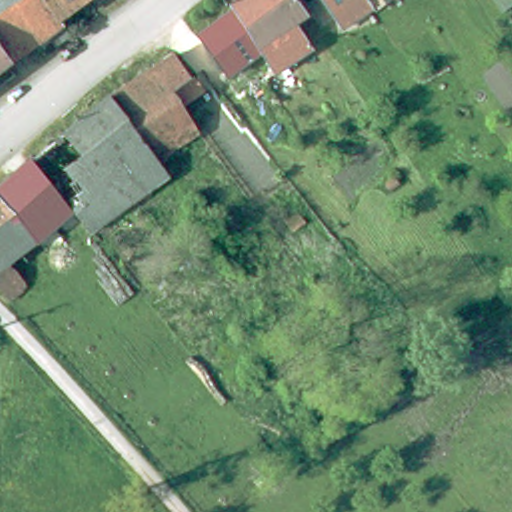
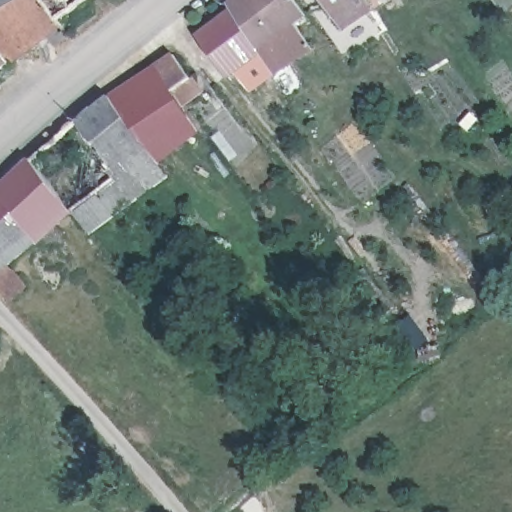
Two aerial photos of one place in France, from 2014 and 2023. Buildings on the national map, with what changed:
unchanged [(56,34),(49,24),(12,54),(0,40),(0,0),(78,0),(64,12),(69,19),(71,23),(56,34)]
unchanged [(312,42),(275,69),(258,46),(228,7),(230,0),(296,0),(306,13),(295,20),(312,42)]
unchanged [(341,23),(322,0),(369,0),(371,1),(341,23)]
unchanged [(369,0),(372,0),(371,1),(369,0)]
unchanged [(258,46),(225,73),(192,34),(228,7),(258,46)]
unchanged [(12,54),(0,63),(0,40),(12,54)]
unchanged [(114,90),(155,60),(173,47),(199,81),(181,94),(199,118),(159,151),(114,90)]
unchanged [(37,150),(114,90),(159,151),(167,162),(139,182),(142,187),(96,222),(78,201),(37,150)]
unchanged [(78,201),(42,232),(1,184),(37,150),(78,201)]
unchanged [(0,282),(0,185),(1,184),(42,232),(16,255),(33,275),(10,294),(0,282)]

